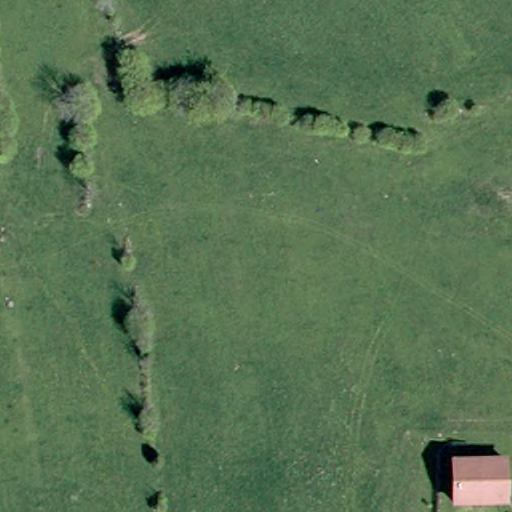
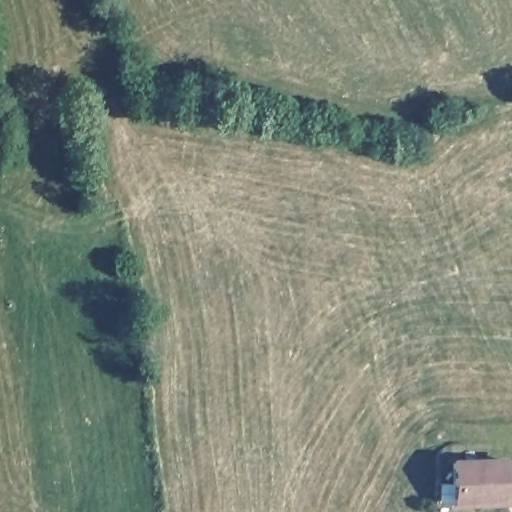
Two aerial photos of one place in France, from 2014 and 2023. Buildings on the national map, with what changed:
unchanged [(512,467),(510,512),(454,512),(454,467),(512,467)]

